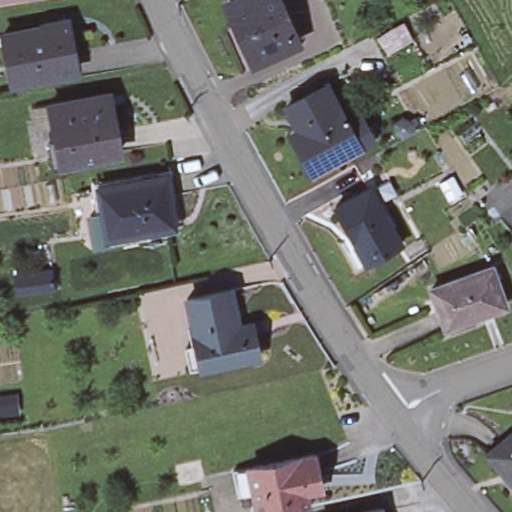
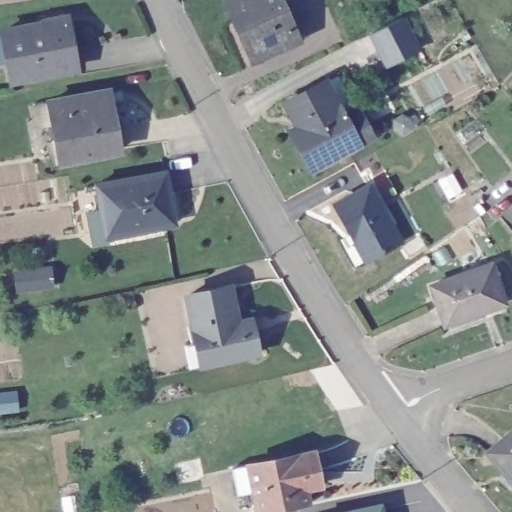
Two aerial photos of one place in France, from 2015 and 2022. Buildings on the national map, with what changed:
unchanged [(297,36),(256,55),(230,0),(279,0),(297,36)]
unchanged [(67,18),(78,67),(13,79),(3,30),(67,18)]
new [(406,23),(421,55),(390,68),(374,37),(406,23)]
unchanged [(320,87),(337,119),(349,113),(352,120),(357,118),(369,140),(309,173),(297,152),(304,148),(283,106),(320,87)]
unchanged [(108,91),(119,152),(62,162),(51,101),(108,91)]
unchanged [(168,171),(171,193),(165,194),(170,223),(109,235),(110,241),(98,243),(91,212),(103,210),(99,182),(168,171)]
unchanged [(371,186),(402,240),(366,260),(335,204),(371,186)]
unchanged [(493,264),(506,303),(446,324),(432,285),(493,264)]
unchanged [(52,266),(55,284),(19,290),(16,272),(52,266)]
unchanged [(232,285),(239,319),(252,317),(259,353),(202,365),(187,295),(232,285)]
unchanged [(512,431),(512,480),(488,451),(512,431)]
unchanged [(306,489),(309,503),(266,512),(260,512),(256,489),(240,493),(234,468),(251,465),(315,451),(322,485),(306,489)]
unchanged [(384,512),(345,512),(382,504),(384,512)]

